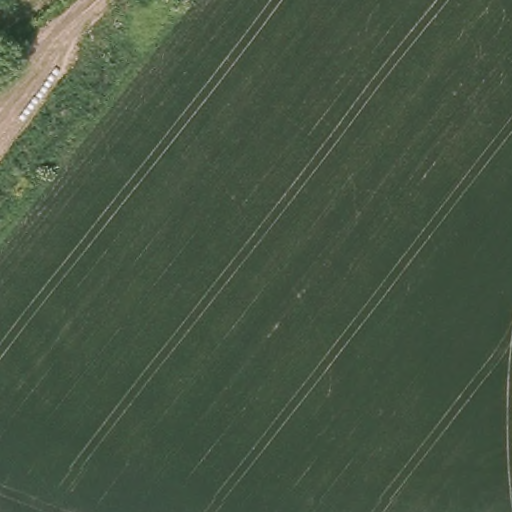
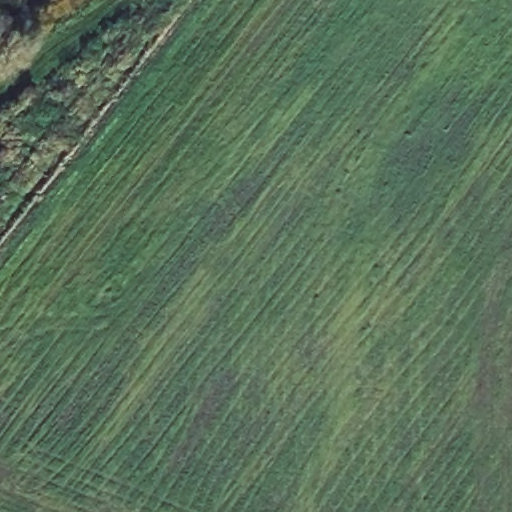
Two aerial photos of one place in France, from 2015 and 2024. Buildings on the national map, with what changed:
[]

